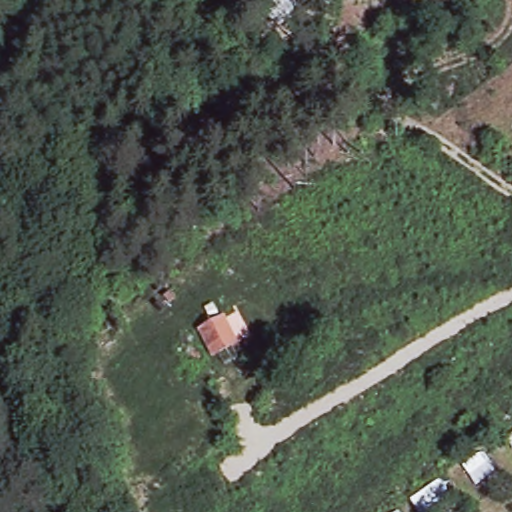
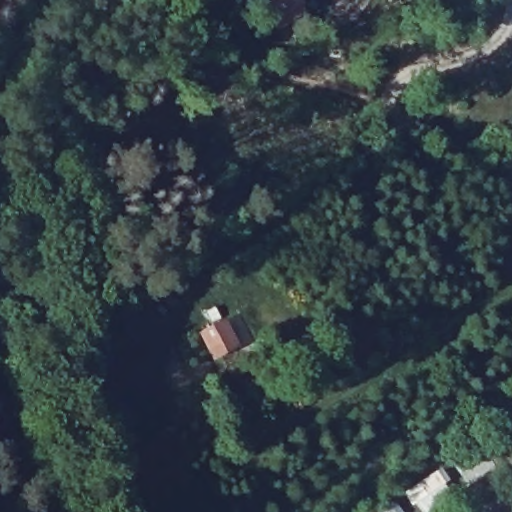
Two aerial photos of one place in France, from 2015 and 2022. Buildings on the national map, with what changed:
unchanged [(281,12),(258,3),(257,0),(294,0),(281,12)]
unchanged [(431,8),(427,0),(445,0),(431,8)]
unchanged [(201,334),(226,322),(239,346),(214,360),(201,334)]

